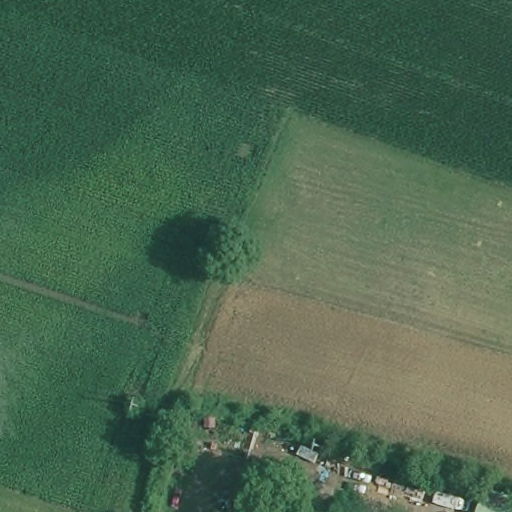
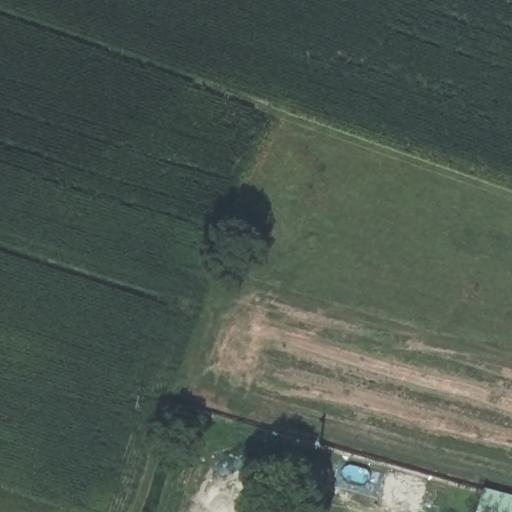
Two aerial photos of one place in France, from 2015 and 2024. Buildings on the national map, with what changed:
unchanged [(484,512),(489,496),(512,502),(512,512),(484,512)]

